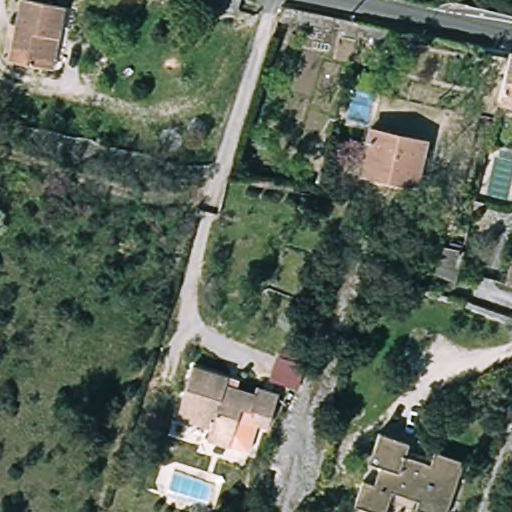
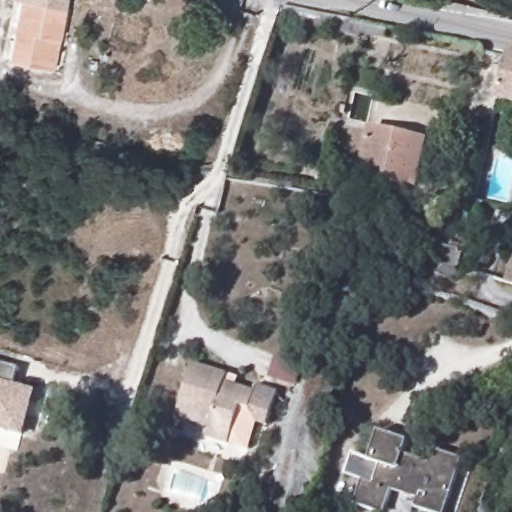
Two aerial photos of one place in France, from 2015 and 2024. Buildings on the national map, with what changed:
unchanged [(6,57),(21,0),(51,0),(66,4),(59,37),(53,68),(39,65),(6,57)]
unchanged [(216,0),(246,0),(244,8),(216,0)]
unchanged [(497,101),(509,51),(512,51),(512,104),(497,101)]
unchanged [(479,139),(484,124),(499,125),(495,144),(479,139)]
unchanged [(423,145),(414,187),(367,174),(378,133),(423,145)]
unchanged [(512,254),(512,281),(504,279),(512,254)]
unchanged [(264,386),(272,362),(300,371),(293,395),(264,386)]
new [(14,385),(35,392),(22,439),(0,432),(0,364),(18,370),(14,385)]
unchanged [(221,382),(219,392),(250,399),(251,393),(274,399),(266,431),(255,429),(246,415),(237,413),(227,449),(206,443),(210,425),(178,415),(189,373),(221,382)]
unchanged [(364,474),(375,478),(381,459),(371,455),(381,425),(410,436),(406,449),(432,457),(436,444),(464,454),(445,512),(416,502),(419,494),(393,485),(385,508),(356,498),(364,474)]

